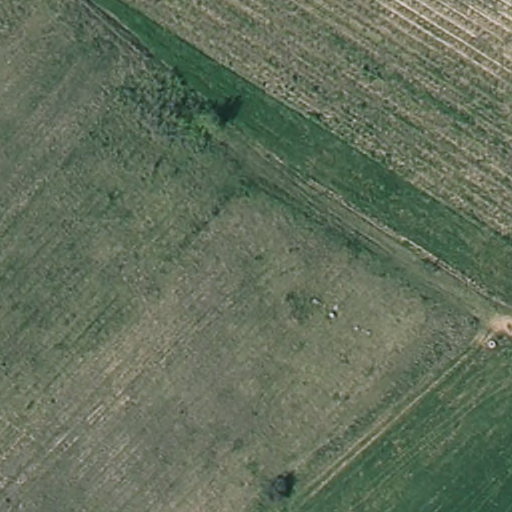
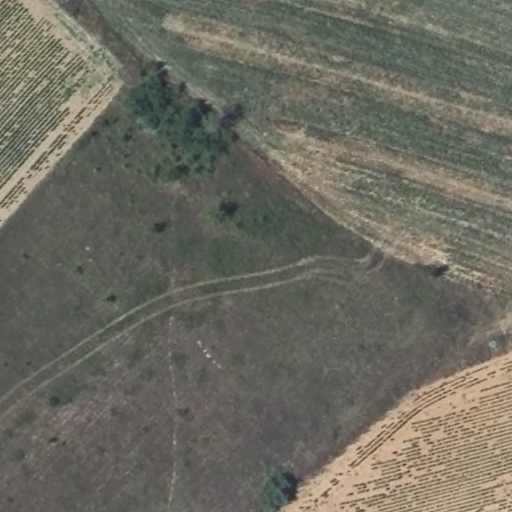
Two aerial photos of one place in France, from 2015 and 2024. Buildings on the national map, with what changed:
[]

